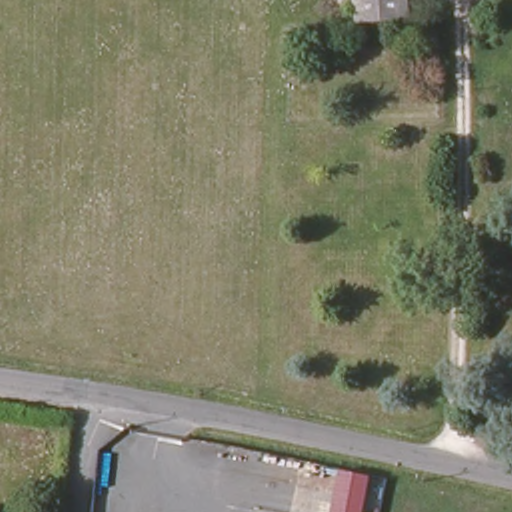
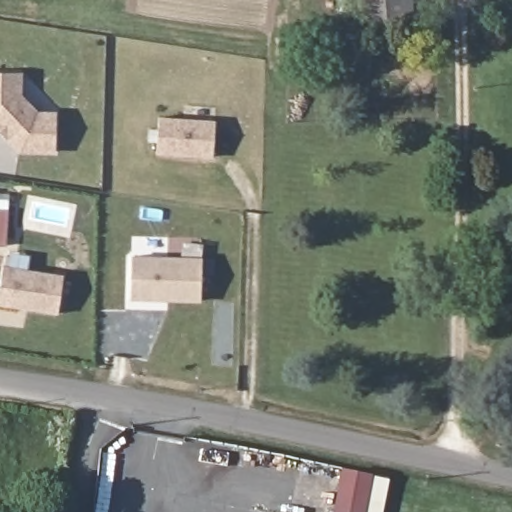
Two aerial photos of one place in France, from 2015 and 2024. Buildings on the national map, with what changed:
unchanged [(416,19),(363,24),(361,0),(415,0),(416,19)]
new [(23,72),(22,94),(39,111),(57,111),(56,153),(20,152),(0,131),(0,72),(23,72)]
new [(216,120),(214,159),(157,155),(160,116),(216,120)]
new [(131,257),(200,260),(200,299),(131,297),(131,257)]
new [(0,305),(0,285),(3,265),(63,275),(57,314),(0,305)]
new [(383,512),(335,512),(342,473),(389,481),(383,512)]

